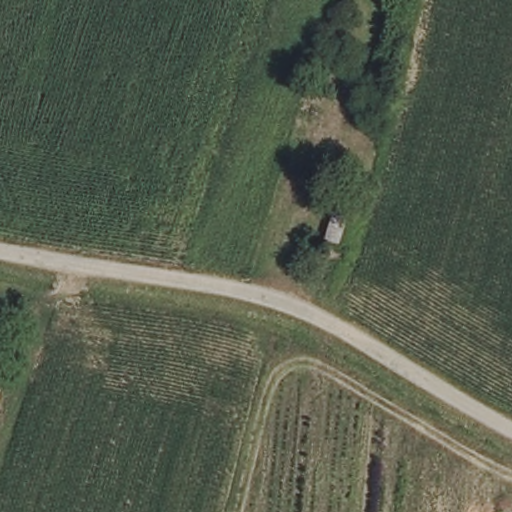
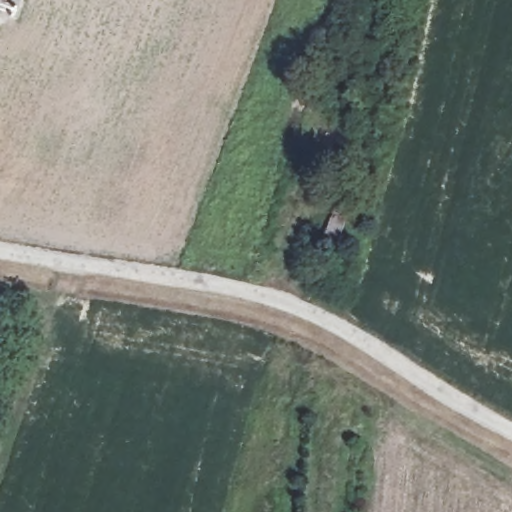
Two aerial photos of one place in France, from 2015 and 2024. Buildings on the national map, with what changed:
unchanged [(350,212),(338,248),(325,243),(337,207),(350,212)]

